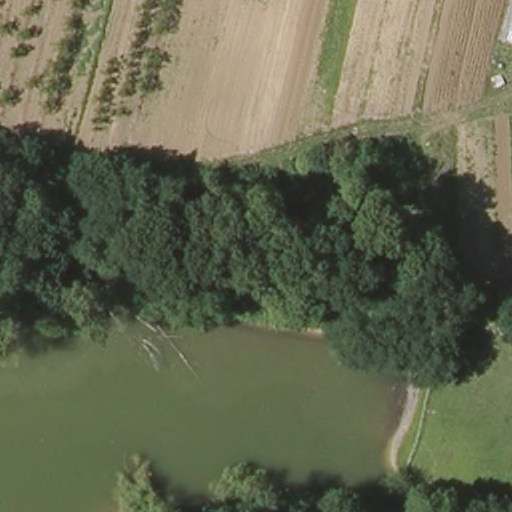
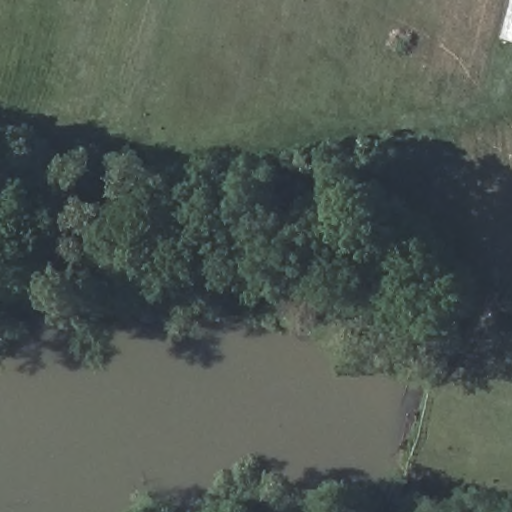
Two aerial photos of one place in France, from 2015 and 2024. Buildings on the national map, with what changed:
unchanged [(512,6),(512,44),(502,43),(512,6)]

